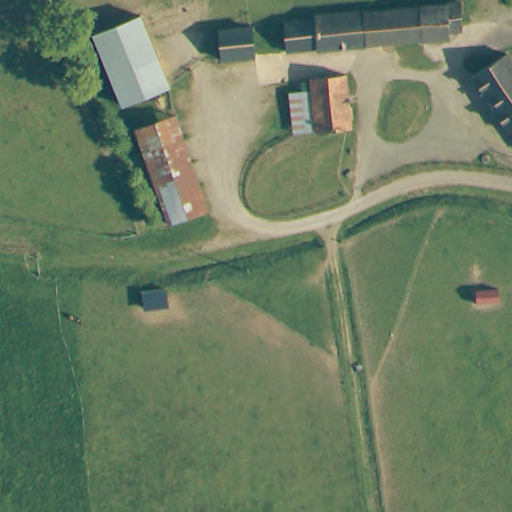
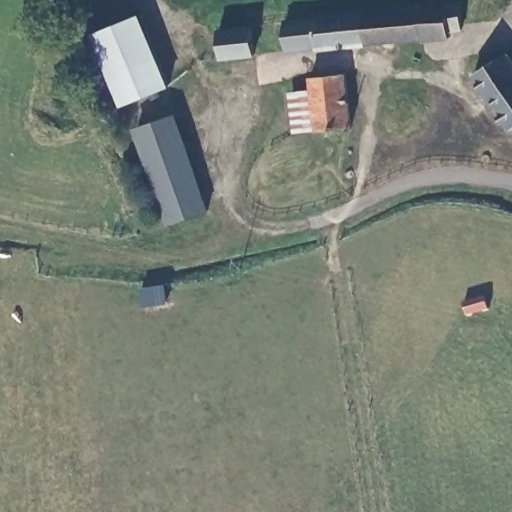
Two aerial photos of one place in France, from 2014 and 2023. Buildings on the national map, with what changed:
unchanged [(453,1),(465,0),(469,19),(471,31),(435,35),(433,19),(431,2),(453,1)]
unchanged [(313,11),(380,7),(395,6),(431,2),(433,19),(435,35),(416,36),(292,46),(290,12),(313,11)]
unchanged [(164,88),(117,105),(105,70),(92,31),(139,15),(156,66),(164,88)]
unchanged [(230,30),(247,29),(251,64),(220,66),(216,30),(230,30)]
unchanged [(510,59),(512,63),(512,121),(505,125),(475,67),(506,52),(510,59)]
unchanged [(307,88),(307,75),(346,75),(350,129),(315,131),(290,134),(285,89),(307,88)]
unchanged [(172,117),(205,213),(167,225),(134,130),(172,117)]
unchanged [(512,137),(505,125),(512,121),(512,137)]

